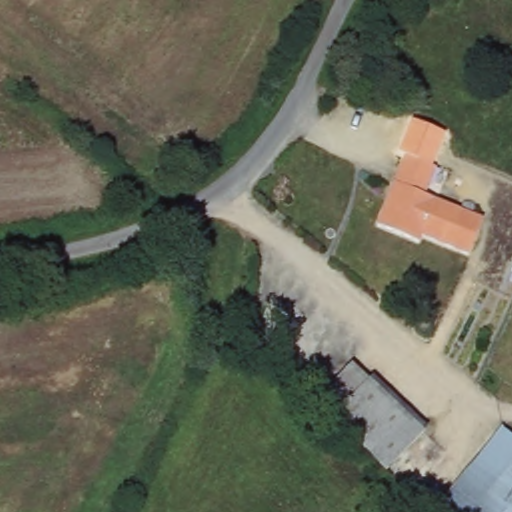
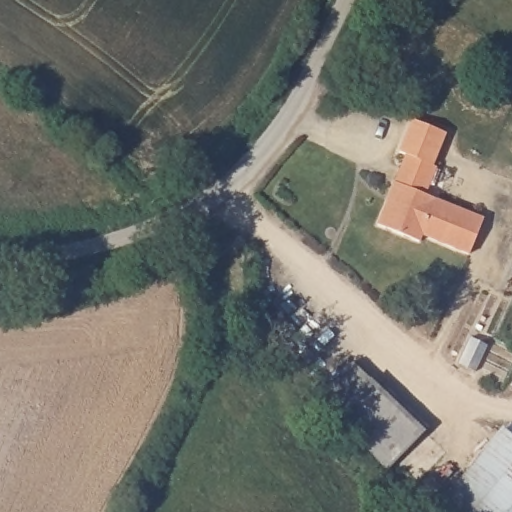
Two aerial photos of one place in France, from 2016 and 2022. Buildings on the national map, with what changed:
unchanged [(409,157),(400,152),(413,120),(446,135),(431,167),(409,157)]
unchanged [(437,170),(426,195),(481,220),(466,255),(422,236),(418,243),(380,226),(409,157),(437,170)]
unchanged [(339,414),(322,396),(337,380),(354,363),(372,380),(339,414)]
unchanged [(428,428),(411,446),(392,468),(339,414),(372,380),(428,428)]
unchanged [(433,512),(502,428),(512,436),(512,512),(433,512)]

